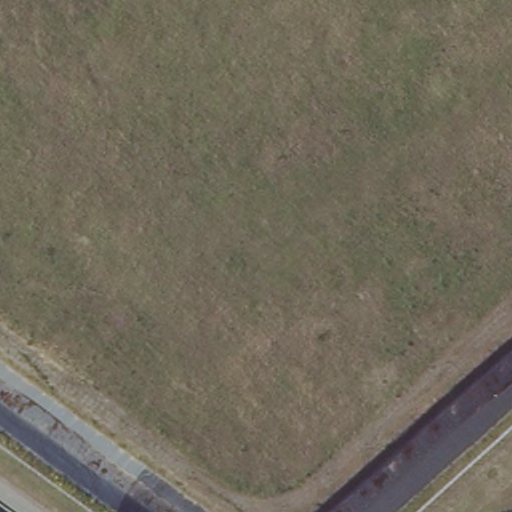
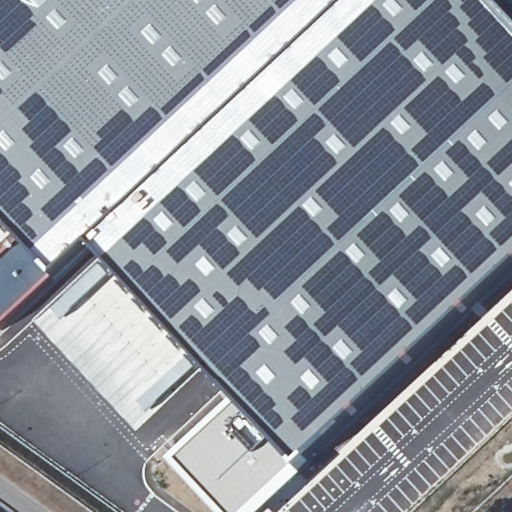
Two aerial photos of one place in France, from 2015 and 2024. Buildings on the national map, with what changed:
new [(495,7),(496,6),(512,22),(512,265),(363,405),(319,451),(299,468),(276,439),(266,428),(252,413),(186,343),(141,291),(105,256),(100,260),(98,260),(95,257),(88,249),(58,275),(32,247),(0,213),(0,0),(488,0),(495,7)]
new [(5,229),(0,234),(0,223),(5,229)]
new [(20,242),(29,249),(32,247),(58,275),(0,328),(0,261),(20,242)]
new [(98,260),(100,260),(163,327),(196,367),(133,431),(30,321),(98,260)]
new [(249,416),(252,413),(266,428),(276,439),(299,468),(304,475),(263,512),(216,512),(169,462),(233,402),(249,416)]

